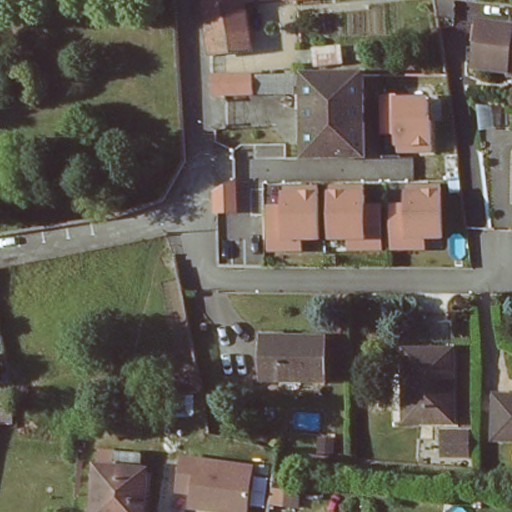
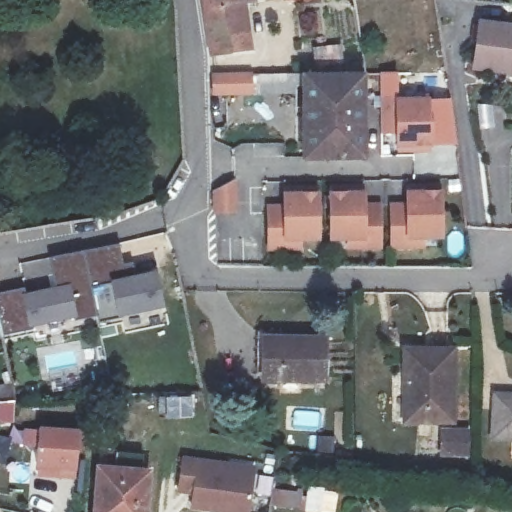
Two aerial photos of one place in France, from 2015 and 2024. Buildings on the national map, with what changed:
unchanged [(212,54),(203,0),(242,0),(249,49),(212,54)]
unchanged [(512,24),(512,78),(470,69),(477,18),(512,24)]
unchanged [(324,50),(340,48),(340,66),(327,67),(315,68),(314,51),(324,50)]
unchanged [(302,162),(303,79),(361,78),(362,160),(302,162)]
unchanged [(211,100),(211,81),(251,80),(252,100),(211,100)]
unchanged [(396,96),(430,95),(432,154),(396,154),(397,136),(380,135),(380,96),(396,96)]
unchanged [(405,202),(405,190),(444,189),(445,238),(427,238),(427,250),(392,251),(390,202),(405,202)]
unchanged [(267,204),(284,205),(284,192),(368,191),(369,204),(382,204),(383,249),(348,251),(347,237),(302,239),(302,251),(267,252),(267,204)]
new [(26,290),(26,296),(57,290),(52,260),(120,247),(123,265),(134,263),(137,277),(159,273),(165,310),(119,320),(113,283),(93,287),(99,317),(78,322),(78,320),(34,329),(35,332),(4,337),(0,315),(0,294),(26,290)]
unchanged [(260,336),(324,337),(324,382),(260,381),(260,336)]
unchanged [(452,351),(450,420),(404,419),(407,351),(452,351)]
unchanged [(512,437),(501,436),(504,392),(512,392),(512,437)]
unchanged [(24,443),(25,427),(38,427),(38,426),(78,428),(75,475),(59,473),(59,465),(36,463),(37,444),(24,443)]
unchanged [(471,427),(472,458),(439,456),(440,426),(471,427)]
unchanged [(250,512),(206,512),(191,510),(193,495),(177,492),(185,455),(257,465),(250,512)]
unchanged [(113,476),(115,460),(141,462),(140,478),(147,479),(145,512),(94,512),(97,475),(113,476)]
unchanged [(277,470),(291,472),(287,502),(272,500),(277,470)]

